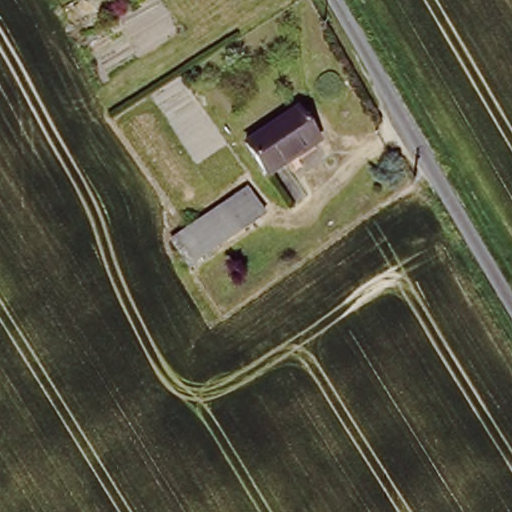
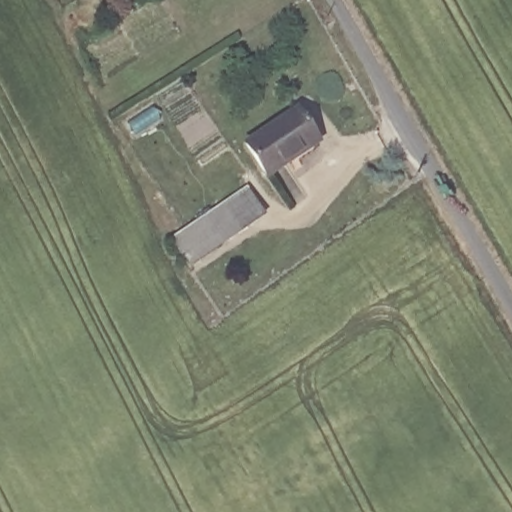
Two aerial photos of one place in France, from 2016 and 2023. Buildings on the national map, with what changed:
unchanged [(302,111),(320,135),(265,168),(246,143),(302,111)]
unchanged [(243,187),(262,216),(186,266),(167,237),(243,187)]

